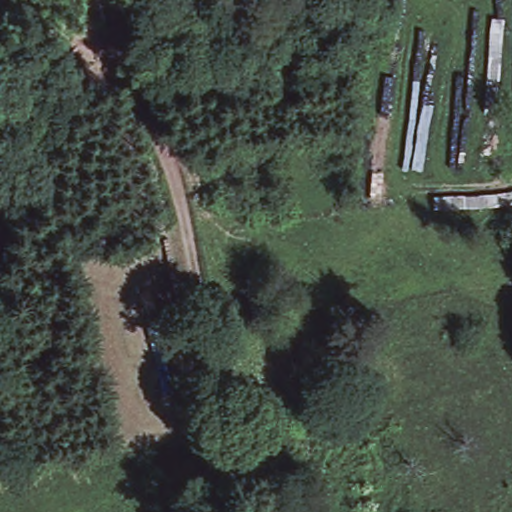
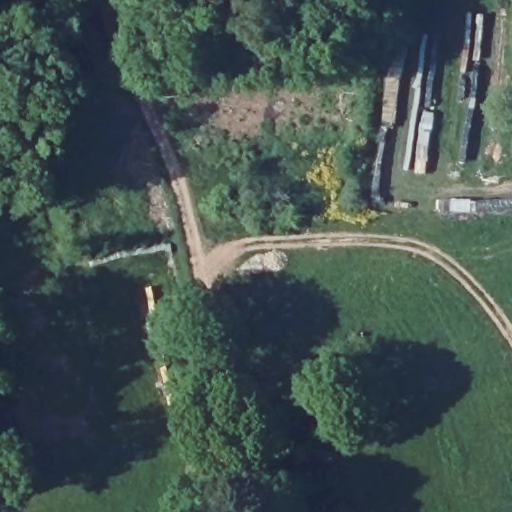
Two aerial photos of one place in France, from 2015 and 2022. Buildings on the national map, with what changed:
unchanged [(154,353),(175,349),(184,396),(165,400),(154,353)]

